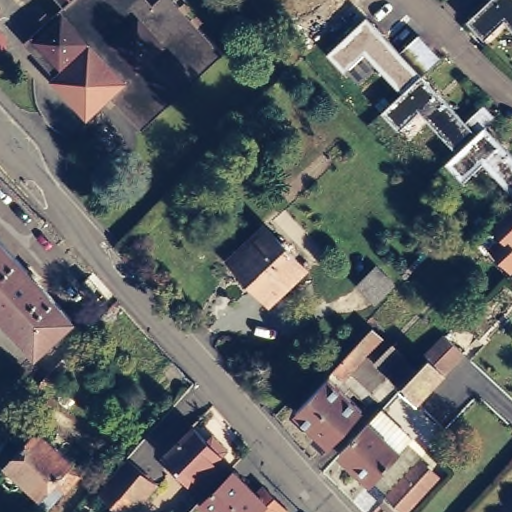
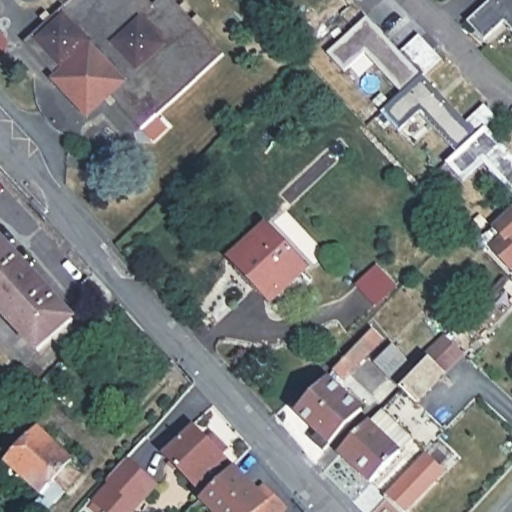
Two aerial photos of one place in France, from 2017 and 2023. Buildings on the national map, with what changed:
unchanged [(22,36),(58,2),(56,0),(105,0),(43,61),(22,36)]
unchanged [(148,0),(150,2),(153,0),(174,0),(175,2),(108,67),(86,42),(53,72),(43,61),(105,0),(148,0)]
unchanged [(488,31),(471,13),(484,0),(512,0),(512,22),(505,15),(488,31)]
unchanged [(175,2),(218,52),(136,126),(105,89),(116,77),(108,67),(175,2)]
unchanged [(413,34),(425,46),(436,55),(421,69),(402,87),(365,49),(347,64),(330,46),(365,11),(400,46),(413,34)]
unchanged [(86,46),(114,77),(82,106),(54,74),(86,46)]
unchanged [(403,124),(384,105),(402,87),(421,69),(465,116),(476,106),(481,106),(490,115),(480,124),(512,156),(512,168),(505,175),(486,157),(467,174),(448,154),(458,145),(422,107),(403,124)]
unchanged [(512,168),(512,196),(498,182),(505,175),(512,168)]
unchanged [(512,244),(512,262),(508,266),(490,246),(502,234),(492,223),(512,205),(512,238),(509,241),(512,244)]
unchanged [(260,223),(296,261),(266,290),(230,252),(260,223)]
unchanged [(67,312),(59,321),(65,327),(55,337),(48,331),(32,345),(0,310),(0,238),(67,312)]
unchanged [(370,256),(388,275),(368,292),(351,274),(370,256)]
unchanged [(362,323),(370,331),(335,366),(327,358),(362,323)]
unchanged [(430,353),(448,335),(466,352),(418,398),(405,385),(400,381),(380,361),(398,343),(417,362),(422,367),(432,357),(430,353)]
unchanged [(328,375),(360,407),(323,445),(312,434),(318,428),(297,407),(328,375)]
unchanged [(375,410),(405,438),(392,452),(393,452),(364,483),(335,453),(375,410)]
unchanged [(43,481),(24,463),(17,471),(15,471),(12,471),(5,463),(3,457),(10,450),(9,449),(37,417),(72,449),(70,451),(80,461),(65,477),(53,490),(43,481)]
unchanged [(196,422),(207,434),(215,428),(228,443),(222,450),(231,460),(198,488),(165,451),(196,422)]
unchanged [(125,457),(153,485),(136,502),(108,475),(125,457)]
unchanged [(418,457),(435,472),(401,508),(384,492),(418,457)]
unchanged [(188,507),(201,492),(203,495),(235,463),(255,483),(262,477),(286,502),(276,512),(211,512),(210,512),(215,507),(208,501),(201,507),(205,512),(183,512),(188,507)]

